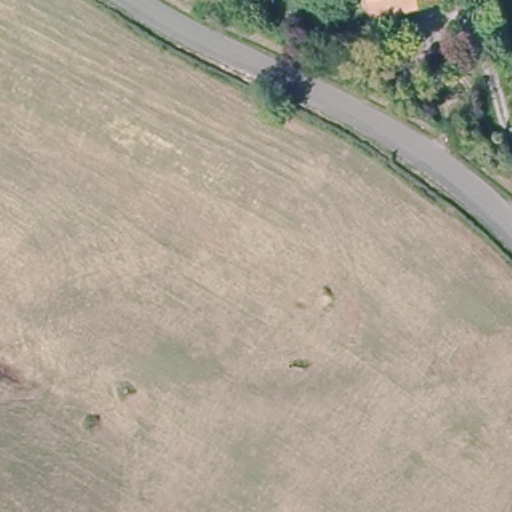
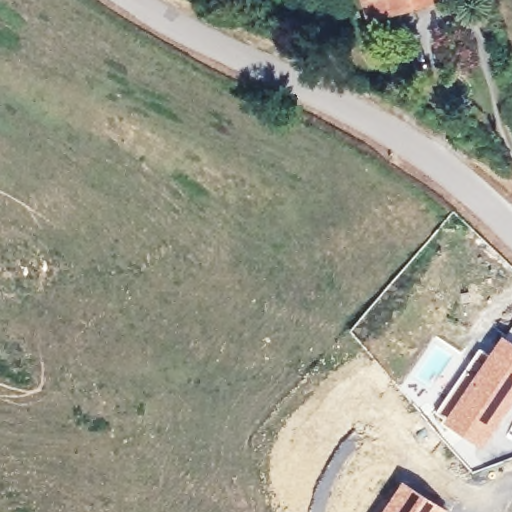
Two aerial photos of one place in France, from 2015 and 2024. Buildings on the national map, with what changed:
unchanged [(430,0),(371,21),(364,0),(430,0)]
new [(489,353),(503,334),(512,340),(512,407),(510,409),(482,447),(444,421),(445,418),(437,412),(480,347),(489,353)]
new [(403,479),(448,511),(448,512),(382,512),(403,479)]

